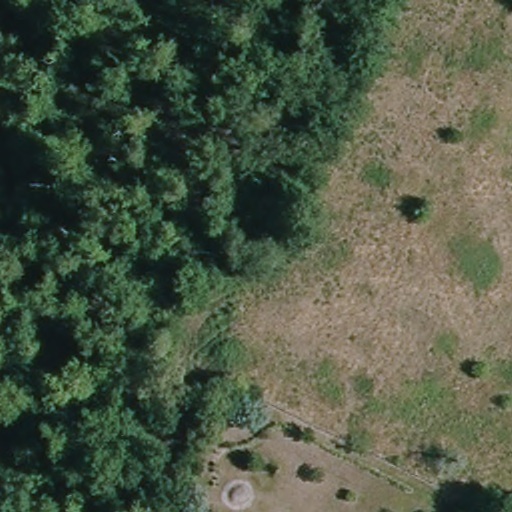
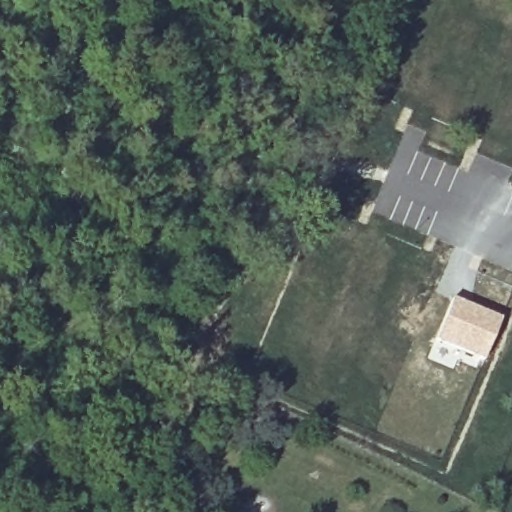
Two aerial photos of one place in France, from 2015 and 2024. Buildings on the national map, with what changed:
new [(451,296),(502,317),(481,364),(459,356),(453,368),(426,357),(451,296)]

